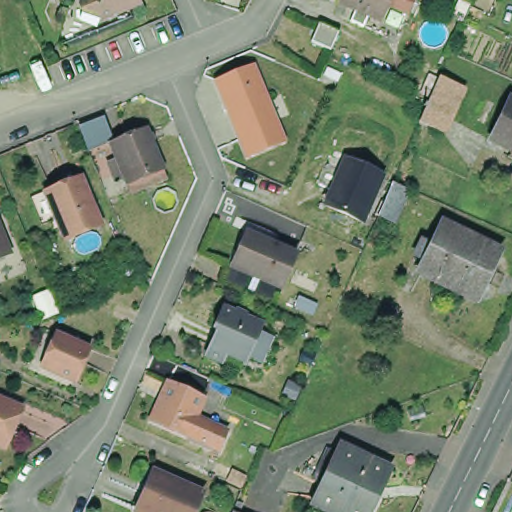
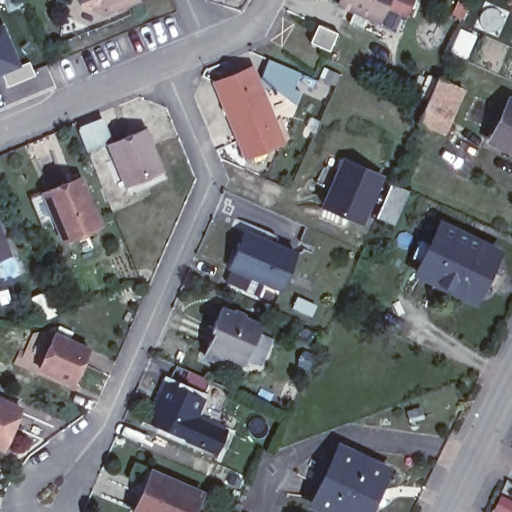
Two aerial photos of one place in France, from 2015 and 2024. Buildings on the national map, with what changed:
unchanged [(117,7),(116,3),(102,10),(84,4),(82,0),(133,0),(117,7)]
unchanged [(380,21),(339,2),(340,0),(388,0),(380,21)]
new [(31,60),(36,76),(7,88),(2,75),(0,77),(0,26),(4,24),(21,63),(31,60)]
unchanged [(337,33),(330,51),(312,42),(319,24),(337,33)]
unchanged [(252,67),(284,143),(247,158),(217,82),(252,67)]
unchanged [(418,126),(425,110),(428,103),(439,79),(462,90),(449,120),(442,135),(418,126)]
unchanged [(496,127),(512,93),(512,135),(496,127)]
unchanged [(104,114),(112,138),(87,147),(79,124),(104,114)]
unchanged [(126,192),(122,182),(121,179),(112,183),(104,164),(112,161),(106,145),(141,129),(157,167),(162,177),(126,192)]
unchanged [(375,177),(355,223),(318,206),(338,161),(375,177)]
unchanged [(77,178),(96,223),(59,238),(41,193),(77,178)]
unchanged [(399,223),(382,216),(397,184),(413,191),(399,223)]
unchanged [(471,308),(419,282),(412,279),(419,266),(407,261),(414,248),(426,253),(437,230),(441,231),(495,258),(471,308)]
unchanged [(245,233),(295,256),(281,290),(231,268),(245,233)]
unchanged [(0,264),(0,235),(11,259),(0,264)]
unchanged [(216,327),(212,324),(221,304),(260,322),(244,359),(225,351),(222,360),(204,351),(216,327)]
unchanged [(90,353),(76,387),(40,372),(55,338),(90,353)]
unchanged [(211,453),(179,438),(142,421),(162,381),(198,398),(189,417),(220,433),(211,453)]
unchanged [(0,448),(0,401),(29,413),(12,453),(0,448)]
unchanged [(334,442),(384,466),(375,485),(382,489),(384,499),(374,502),(369,512),(324,512),(304,503),(334,442)]
unchanged [(240,476),(236,487),(224,481),(228,471),(240,476)]
unchanged [(195,512),(134,512),(145,491),(139,489),(146,473),(202,498),(195,512)]

